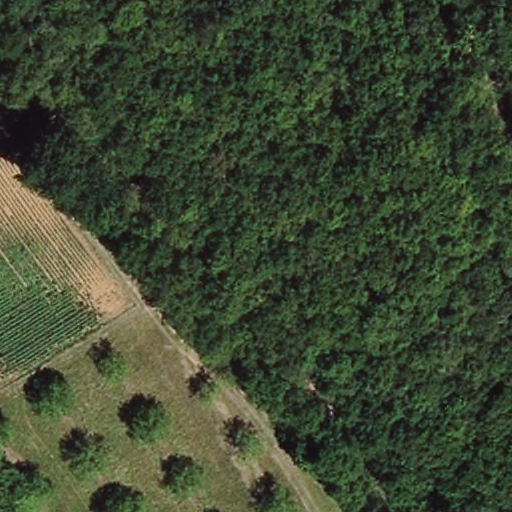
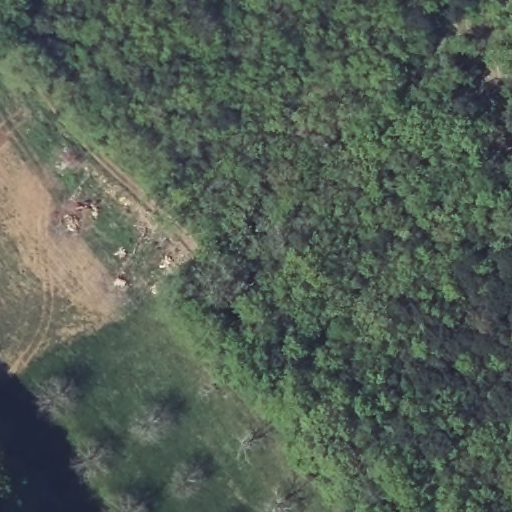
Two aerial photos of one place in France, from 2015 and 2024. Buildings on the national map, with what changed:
[]

